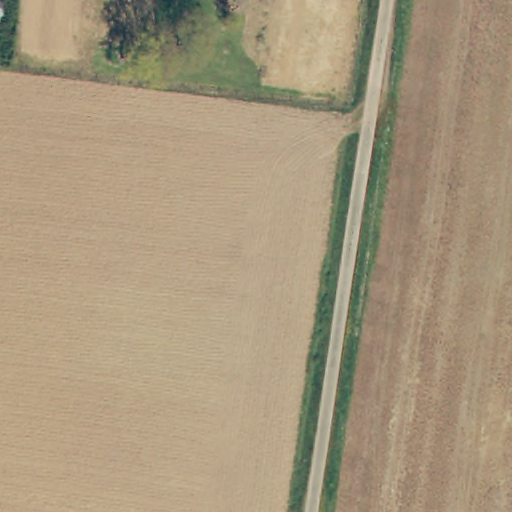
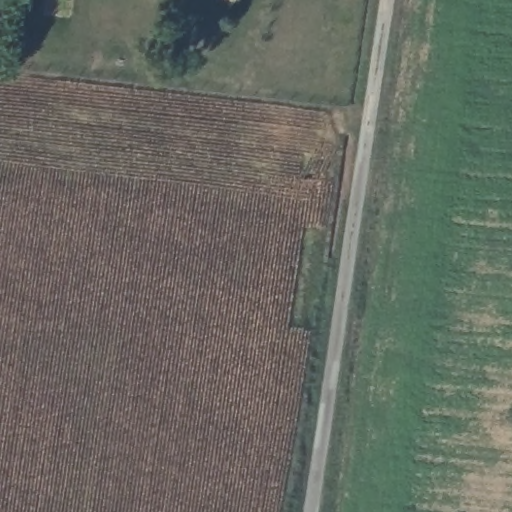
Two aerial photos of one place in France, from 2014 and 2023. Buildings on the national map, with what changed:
unchanged [(4,12),(0,34),(0,0),(5,0),(4,12)]

